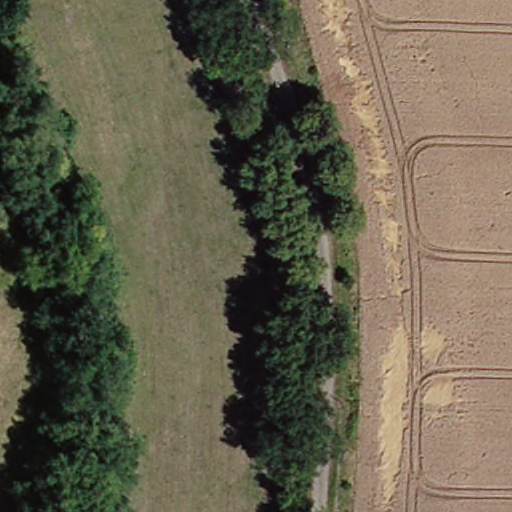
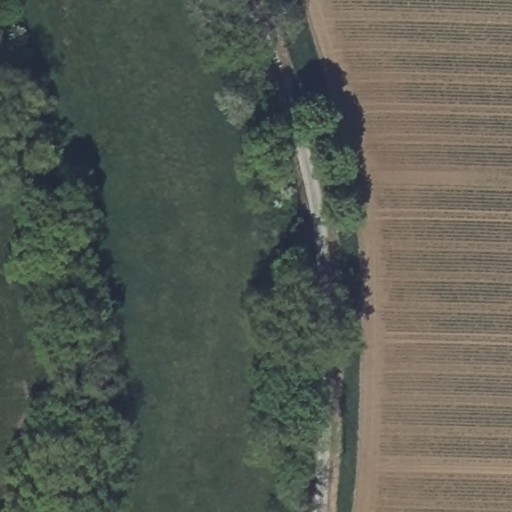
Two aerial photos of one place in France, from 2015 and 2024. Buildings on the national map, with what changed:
[]

